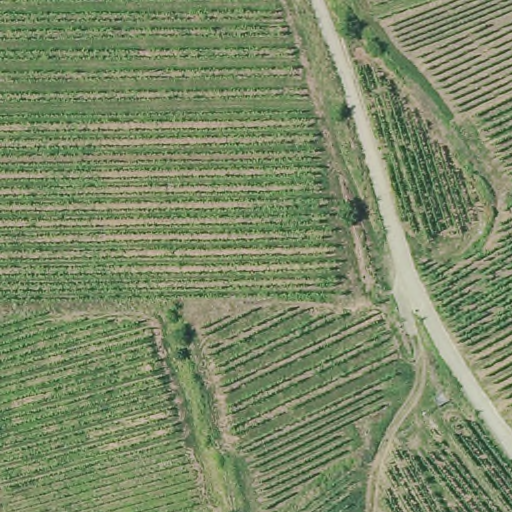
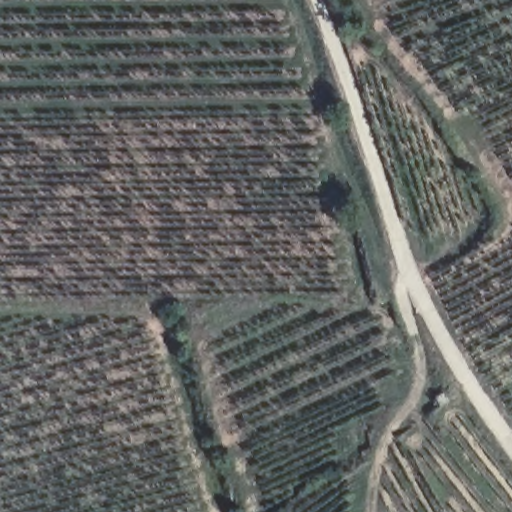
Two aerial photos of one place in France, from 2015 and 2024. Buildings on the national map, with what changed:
unchanged [(450,401),(440,407),(435,398),(446,392),(450,401)]

